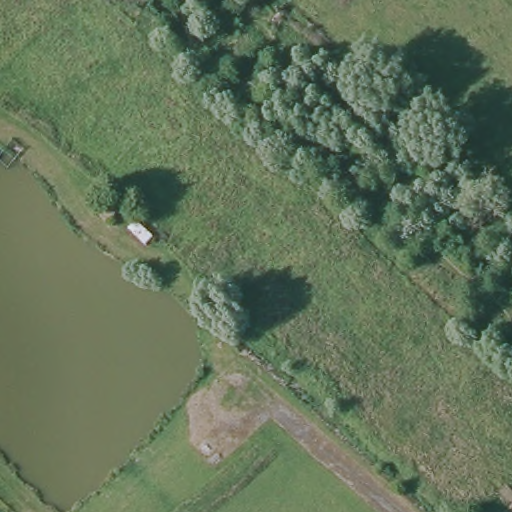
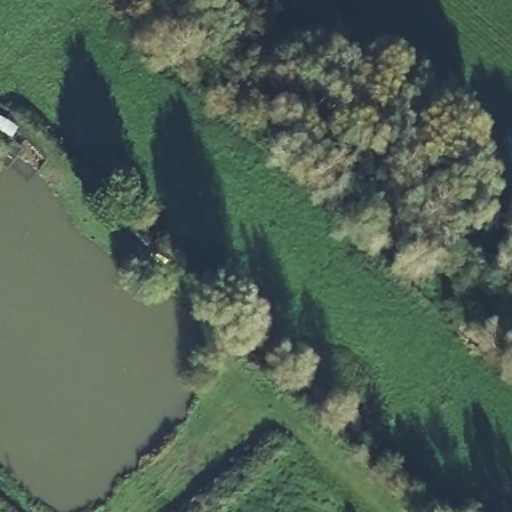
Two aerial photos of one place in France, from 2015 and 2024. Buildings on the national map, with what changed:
unchanged [(120,216),(110,227),(97,215),(109,204),(120,216)]

